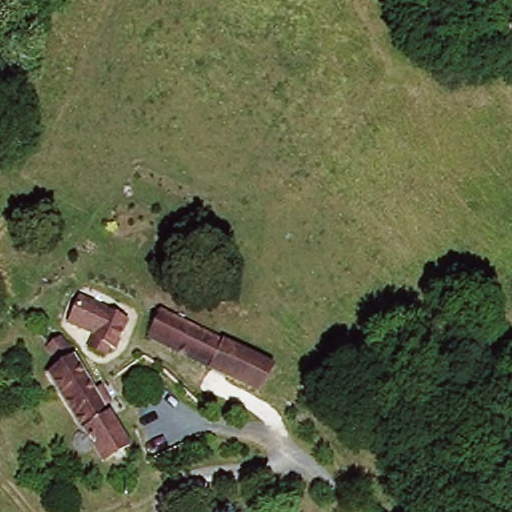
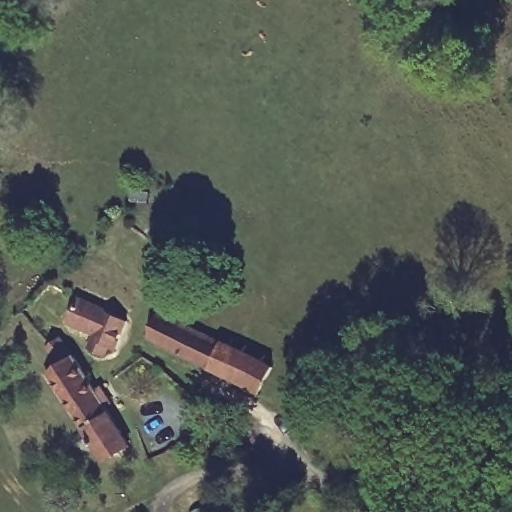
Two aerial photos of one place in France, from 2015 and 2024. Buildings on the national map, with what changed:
unchanged [(72,323),(82,300),(132,323),(119,352),(112,349),(109,358),(92,351),(100,336),(72,323)]
unchanged [(265,388),(153,332),(166,307),(277,362),(265,388)]
unchanged [(54,336),(69,356),(100,405),(125,446),(99,462),(90,446),(72,446),(78,429),(41,374),(54,366),(42,347),(54,336)]

